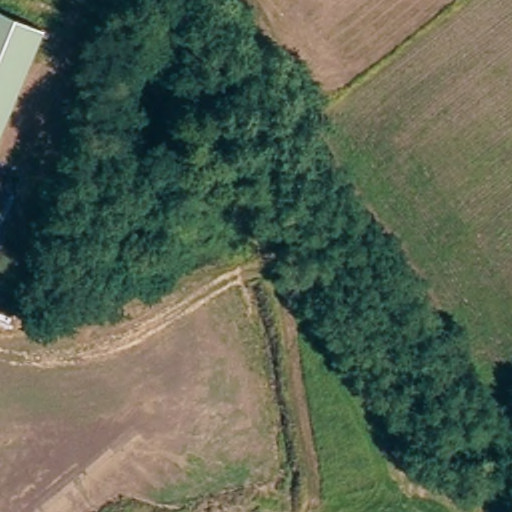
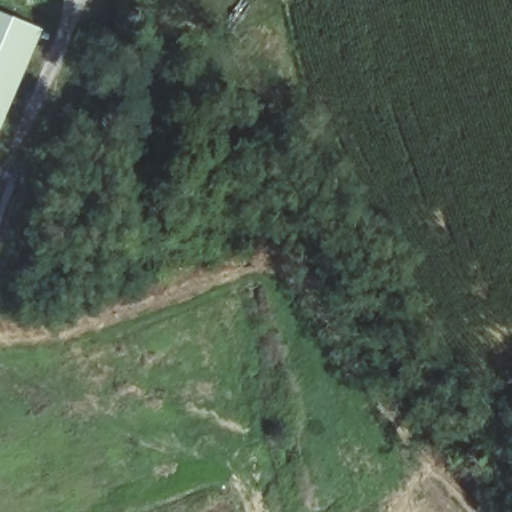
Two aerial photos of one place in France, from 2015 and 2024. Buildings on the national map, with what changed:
unchanged [(0,123),(0,20),(36,32),(0,123)]

